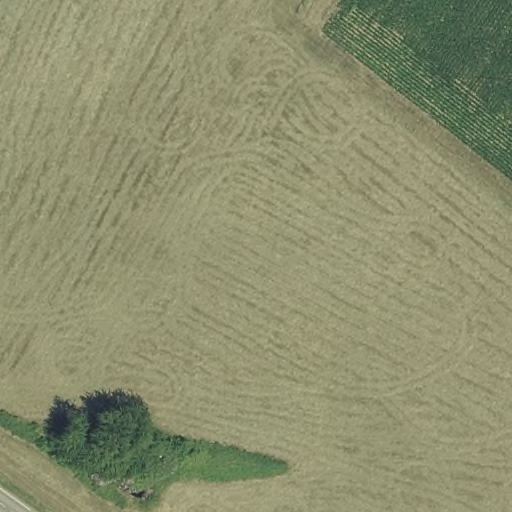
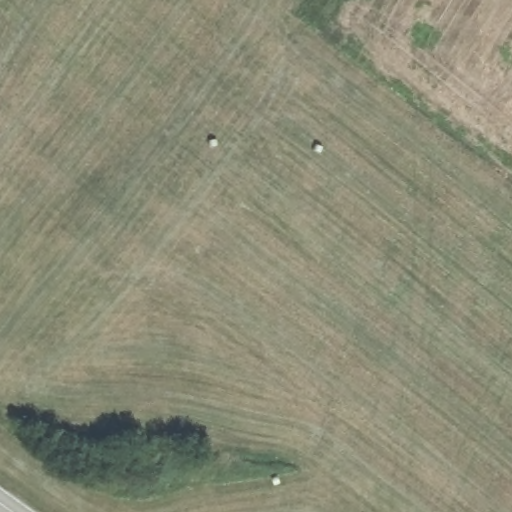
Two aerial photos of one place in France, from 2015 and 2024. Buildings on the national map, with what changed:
unchanged [(112,413),(163,425),(187,466),(148,485),(99,477),(78,434),(112,413)]

